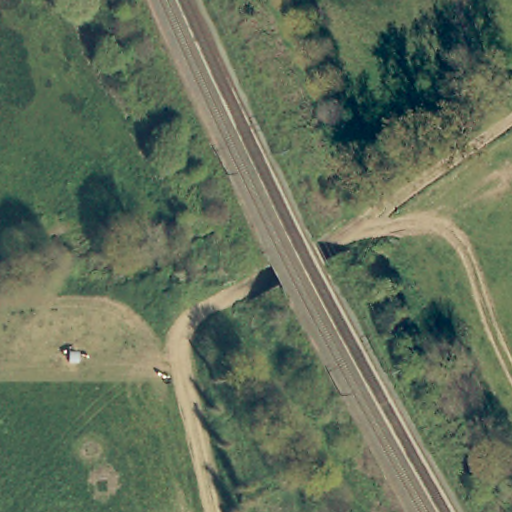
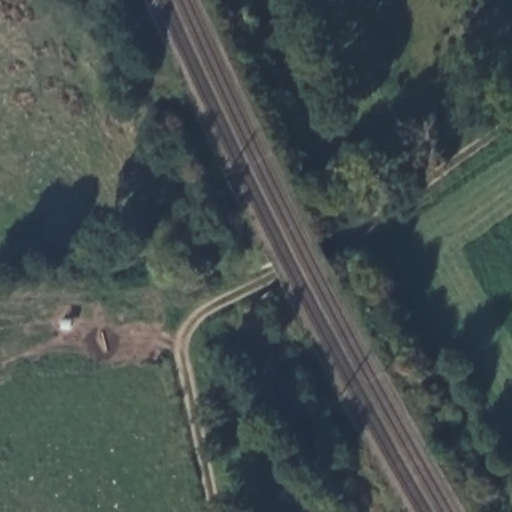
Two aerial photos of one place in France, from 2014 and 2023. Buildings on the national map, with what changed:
[]

